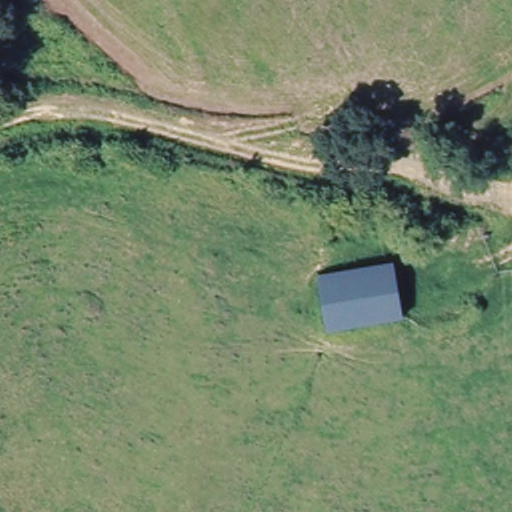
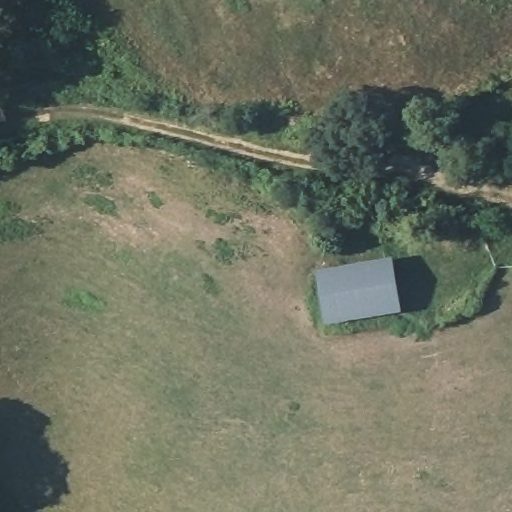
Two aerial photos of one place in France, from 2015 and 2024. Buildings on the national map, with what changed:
unchanged [(397,253),(404,312),(325,325),(322,267),(397,253)]

